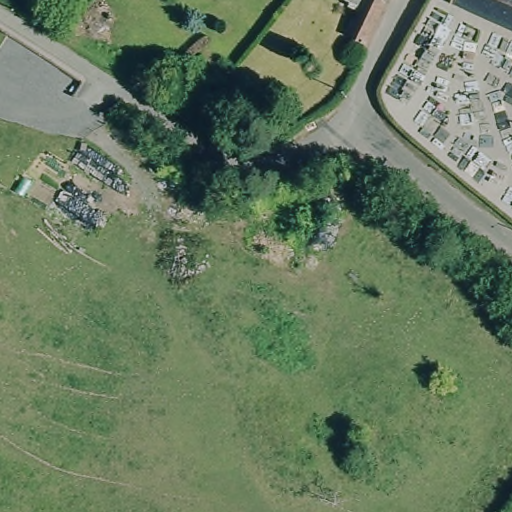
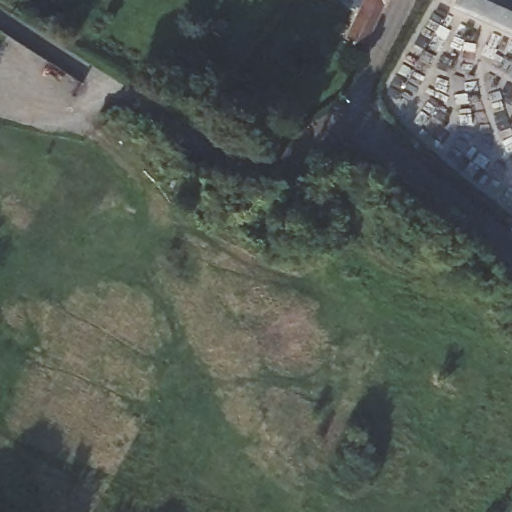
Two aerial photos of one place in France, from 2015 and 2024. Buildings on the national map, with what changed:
unchanged [(362,43),(358,41),(349,36),(364,3),(358,0),(393,0),(366,53),(359,50),(362,43)]
unchanged [(464,0),(512,0),(512,23),(464,0)]

